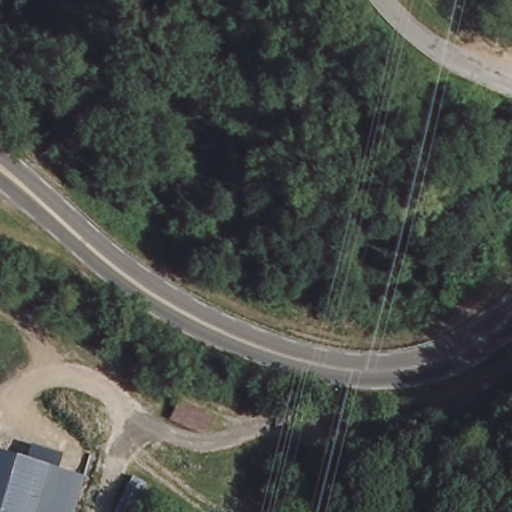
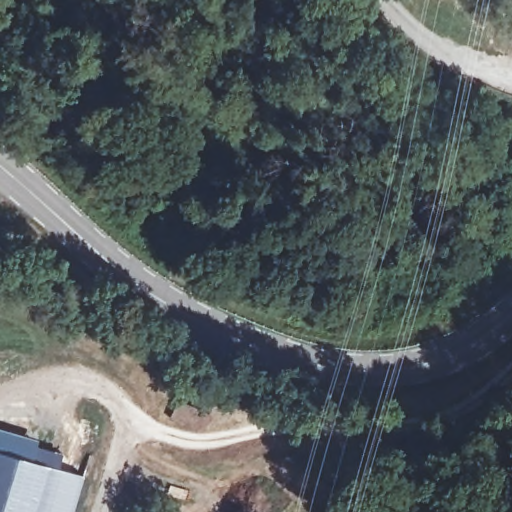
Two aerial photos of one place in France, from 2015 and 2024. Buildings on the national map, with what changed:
unchanged [(185,410),(196,415),(206,420),(198,437),(179,427),(185,410)]
unchanged [(31,446),(61,455),(58,469),(86,476),(75,512),(0,512),(0,452),(26,460),(31,446)]

